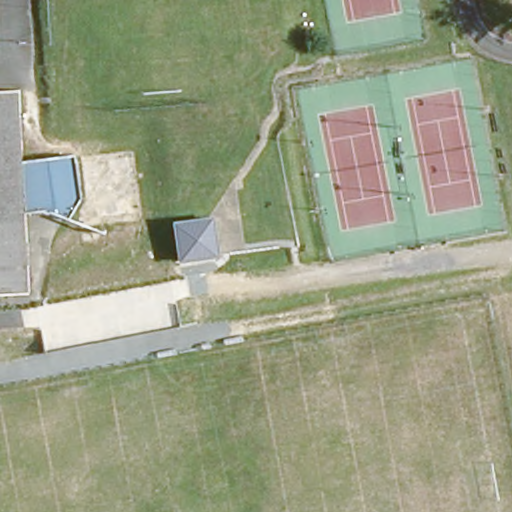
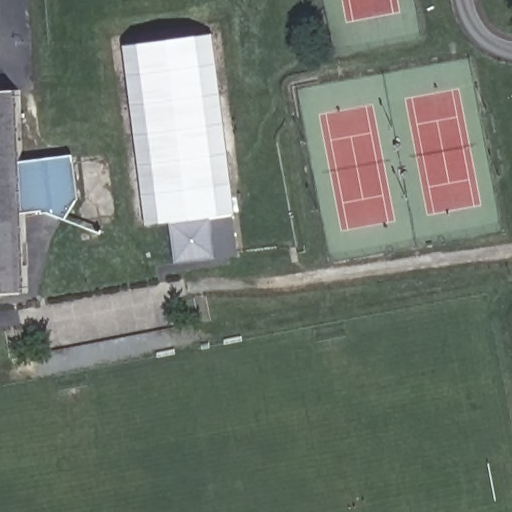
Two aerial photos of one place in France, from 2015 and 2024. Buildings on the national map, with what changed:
new [(214,34),(236,214),(209,217),(208,214),(167,217),(168,221),(147,224),(124,46),(214,34)]
unchanged [(13,90),(17,164),(70,157),(74,195),(64,217),(49,210),(21,211),(24,292),(0,294),(0,91),(13,90)]
unchanged [(208,214),(209,217),(212,252),(171,256),(168,221),(167,217),(208,214)]

